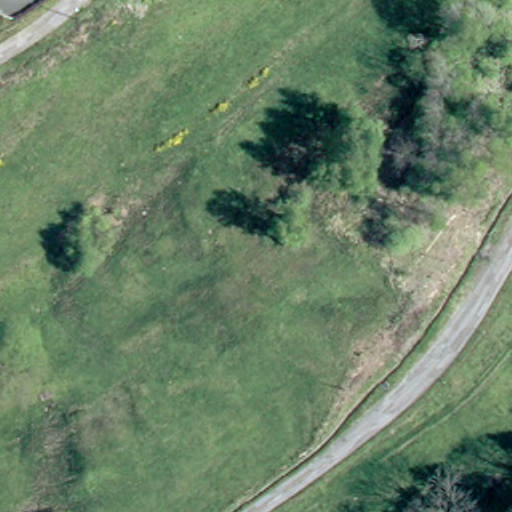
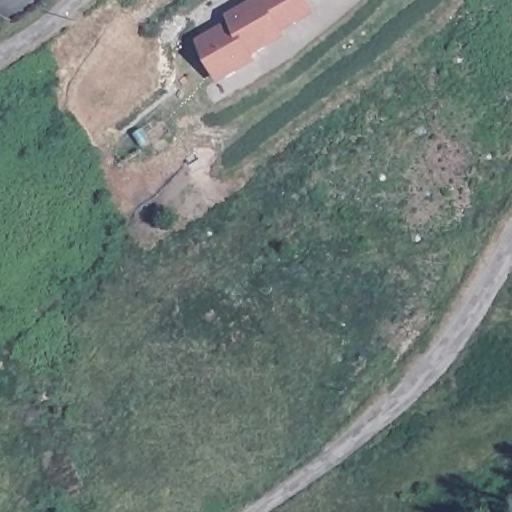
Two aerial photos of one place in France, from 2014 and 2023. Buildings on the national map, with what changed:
new [(315,14),(283,30),(287,37),(253,54),(257,61),(220,81),(197,41),(230,20),(229,16),(257,0),(308,0),(315,14)]

